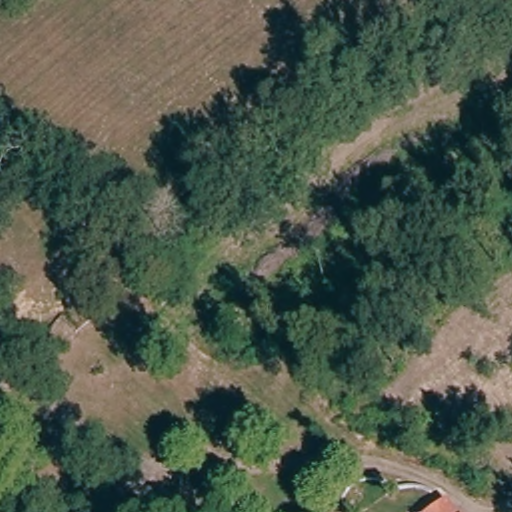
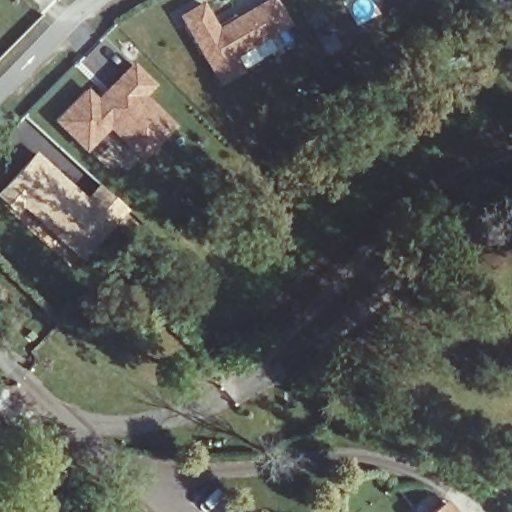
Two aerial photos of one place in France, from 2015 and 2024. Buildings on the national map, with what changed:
new [(291,24),(235,55),(244,72),(219,84),(179,14),(204,0),(218,25),(261,0),(277,0),(291,24)]
new [(97,98),(132,61),(155,85),(146,95),(176,126),(140,160),(109,129),(85,151),(53,121),(85,88),(97,98)]
new [(99,183),(127,210),(80,258),(23,208),(16,214),(0,197),(0,188),(35,153),(85,197),(99,183)]
unchanged [(443,512),(428,512),(437,505),(443,512)]

